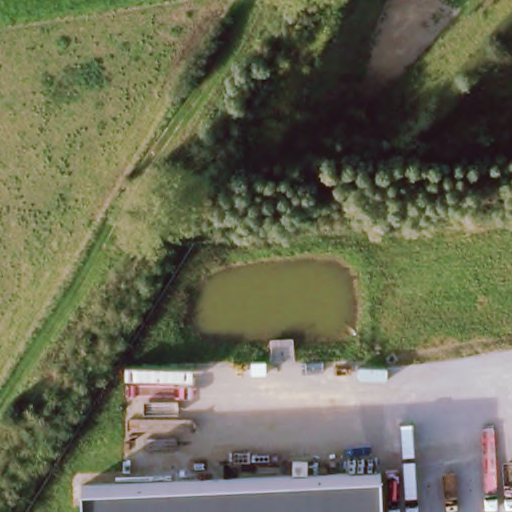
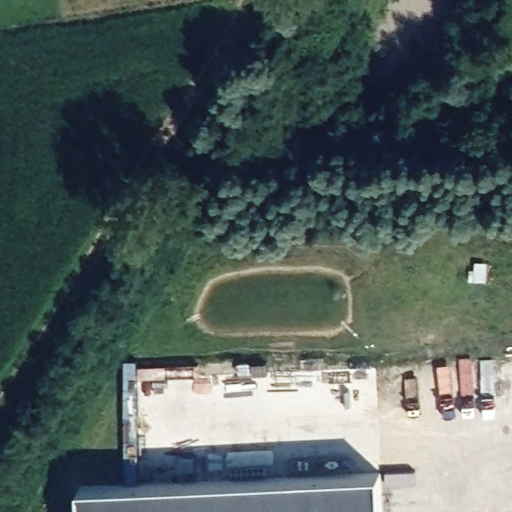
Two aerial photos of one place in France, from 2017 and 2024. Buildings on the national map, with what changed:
unchanged [(380,473),(382,512),(83,512),(81,486),(380,473)]

